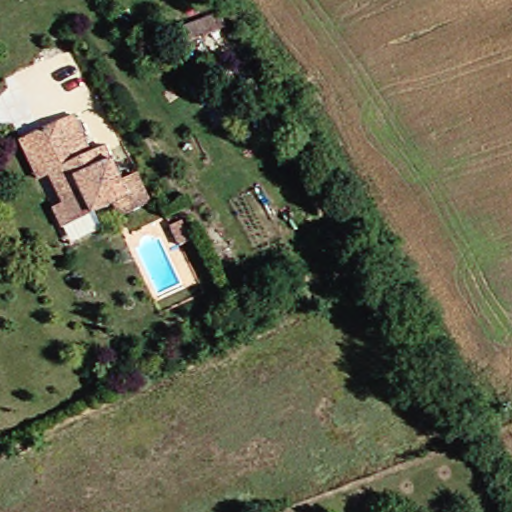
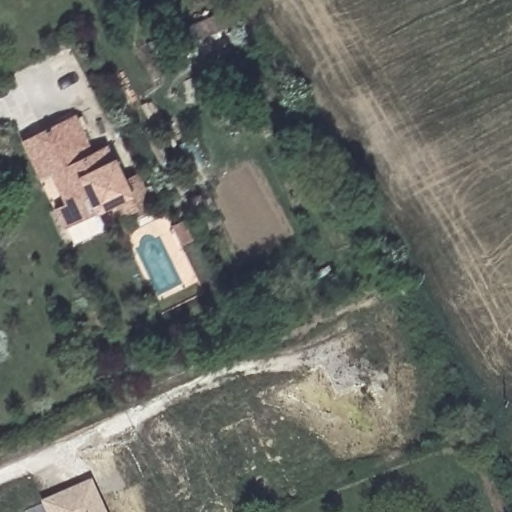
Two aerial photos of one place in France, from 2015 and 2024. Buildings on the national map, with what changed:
unchanged [(152,200),(124,214),(117,201),(65,226),(56,207),(66,202),(52,172),(42,177),(23,139),(34,134),(78,112),(96,150),(109,145),(124,177),(139,170),(152,200)]
new [(43,502),(92,479),(106,512),(47,512),(43,502)]

